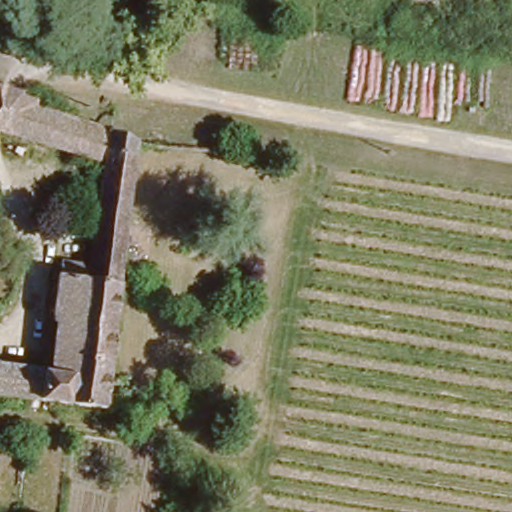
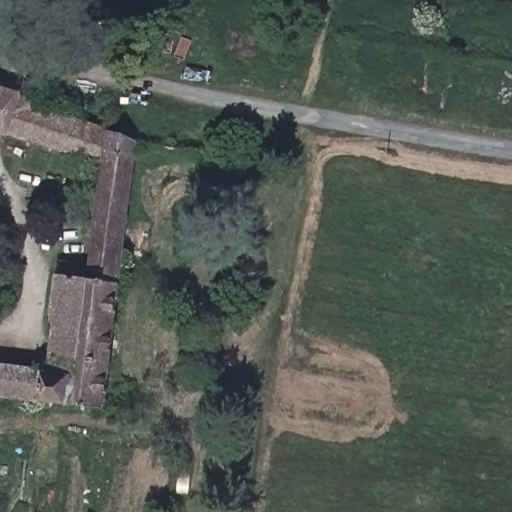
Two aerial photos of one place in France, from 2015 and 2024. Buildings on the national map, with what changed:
unchanged [(1,128),(0,128),(0,87),(12,90),(1,128)]
unchanged [(89,155),(1,128),(12,90),(23,94),(53,103),(53,110),(95,125),(89,155)]
unchanged [(104,270),(117,164),(89,155),(95,125),(153,142),(117,410),(0,395),(0,364),(63,370),(69,326),(76,266),(104,270)]

